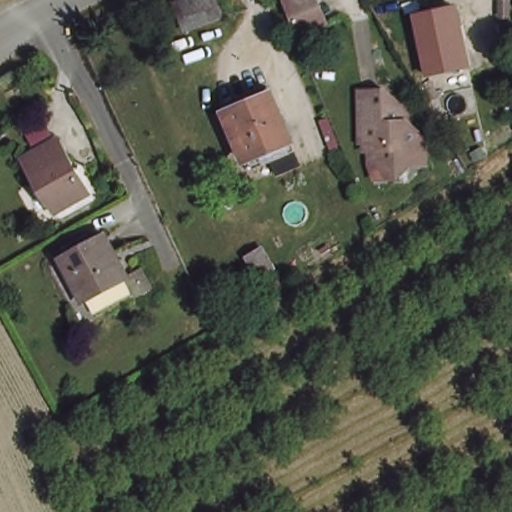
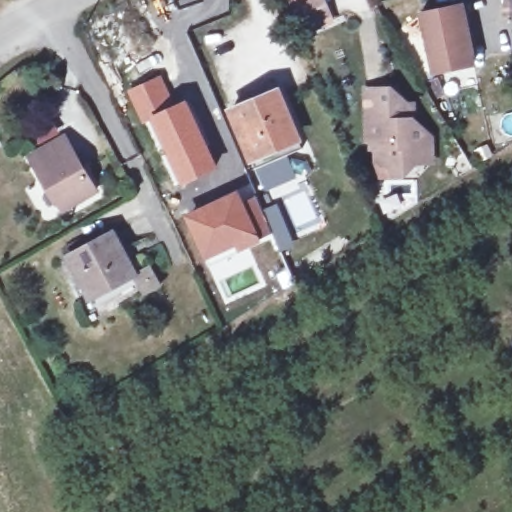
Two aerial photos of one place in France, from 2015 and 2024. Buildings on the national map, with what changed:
unchanged [(167,9),(185,0),(220,0),(231,18),(185,39),(167,9)]
unchanged [(325,0),(332,16),(301,29),(289,0),(325,0)]
unchanged [(499,0),(512,0),(512,18),(499,17),(499,0)]
unchanged [(419,14),(460,6),(472,68),(432,74),(419,14)]
new [(161,73),(175,103),(150,117),(151,119),(150,120),(142,124),(125,90),(161,73)]
unchanged [(417,157),(411,171),(397,166),(380,165),(378,148),(372,146),(372,139),(367,138),(367,91),(393,90),(395,111),(417,105),(422,109),(419,116),(428,134),(431,156),(417,157)]
unchanged [(298,150),(254,167),(231,110),(275,92),(298,150)]
new [(151,119),(150,117),(175,103),(187,97),(219,168),(180,186),(150,120),(151,119)]
unchanged [(93,194),(62,211),(49,189),(44,191),(25,158),(64,138),(93,194)]
new [(288,155),(297,178),(265,190),(255,168),(288,155)]
new [(280,252),(273,236),(238,253),(235,248),(205,261),(182,214),(241,187),(245,197),(255,193),(262,209),(277,203),(295,245),(280,252)]
unchanged [(132,278),(88,300),(67,258),(110,237),(132,278)]
unchanged [(269,246),(279,265),(275,268),(265,274),(254,255),(267,248),(269,246)]

